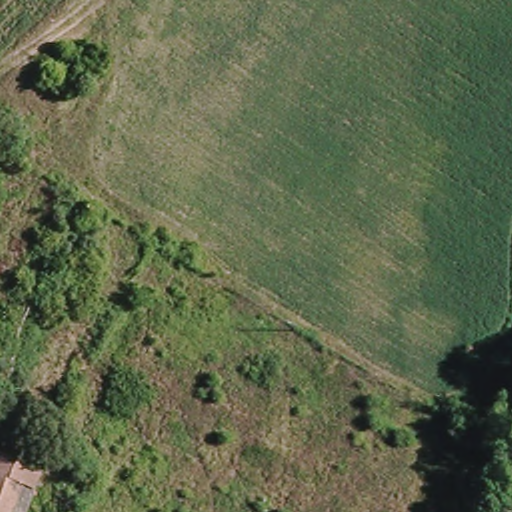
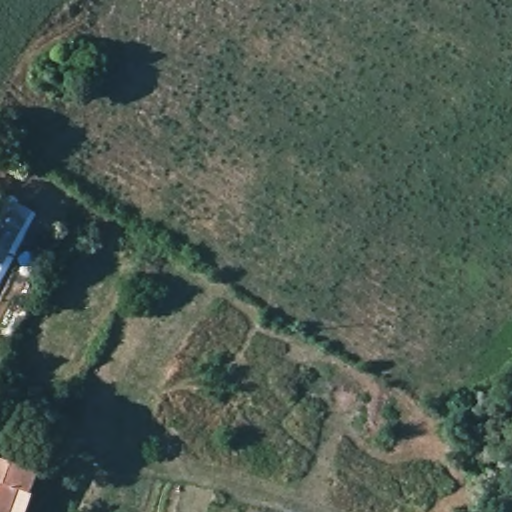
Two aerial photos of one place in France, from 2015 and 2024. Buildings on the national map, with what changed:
new [(0,195),(36,212),(0,282),(0,195)]
unchanged [(0,468),(4,470),(14,447),(27,452),(19,475),(38,486),(31,501),(0,487),(0,468)]
unchanged [(26,512),(0,512),(0,487),(31,501),(26,512)]

